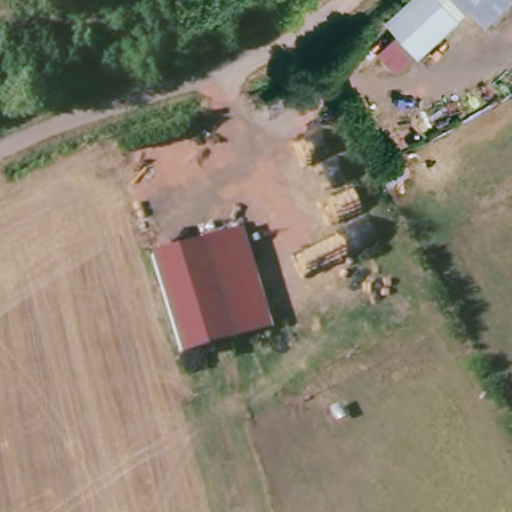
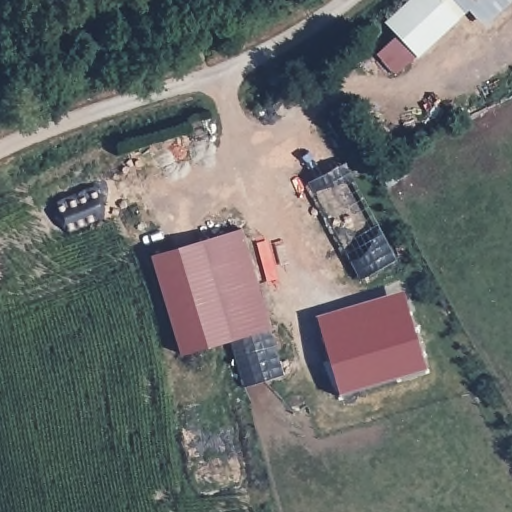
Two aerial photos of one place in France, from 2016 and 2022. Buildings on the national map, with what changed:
unchanged [(416,0),(446,0),(458,13),(473,0),(478,0),(491,15),(478,28),(468,17),(413,65),(382,28),(416,0)]
unchanged [(458,13),(446,0),(473,0),(458,13)]
unchanged [(491,15),(478,0),(508,0),(491,15)]
unchanged [(191,243),(236,230),(265,326),(220,339),(178,351),(150,256),(191,243)]
new [(402,294),(425,372),(339,397),(319,318),(402,294)]

